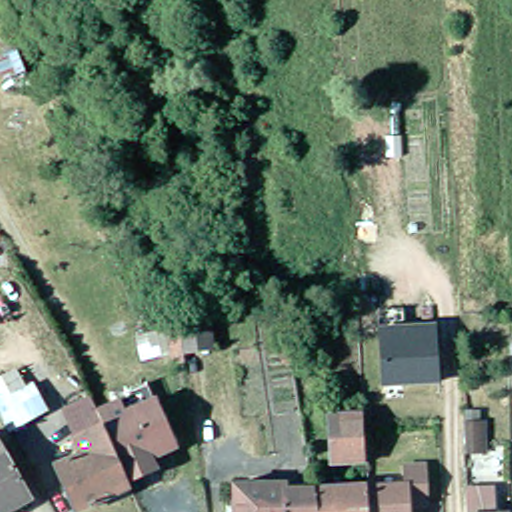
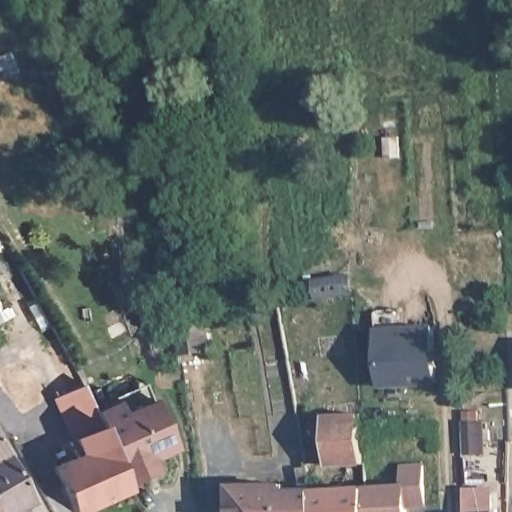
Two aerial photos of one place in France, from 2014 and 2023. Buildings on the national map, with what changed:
unchanged [(404,308),(406,325),(436,324),(439,383),(381,384),(378,310),(404,308)]
unchanged [(167,326),(179,321),(209,318),(213,348),(184,352),(185,360),(173,362),(167,326)]
unchanged [(18,445),(4,423),(0,416),(0,401),(11,395),(21,412),(44,398),(56,422),(18,445)]
unchanged [(137,493),(92,512),(78,512),(61,470),(86,458),(68,413),(96,401),(103,418),(133,482),(137,493)]
unchanged [(123,408),(128,418),(160,404),(179,445),(148,461),(153,471),(133,482),(103,418),(123,408)]
unchanged [(371,468),(336,470),(333,420),(368,417),(369,430),(371,468)]
unchanged [(484,454),(469,454),(467,424),(483,423),(484,454)]
unchanged [(4,456),(31,504),(17,512),(0,512),(0,449),(4,456)]
unchanged [(404,473),(425,471),(428,502),(408,504),(408,512),(369,512),(368,493),(406,491),(404,473)]
unchanged [(284,487),(284,495),(312,494),(315,512),(235,512),(234,488),(284,487)]
unchanged [(482,490),(483,512),(467,512),(467,491),(482,490)]
unchanged [(368,493),(369,512),(315,512),(312,494),(368,493)]

